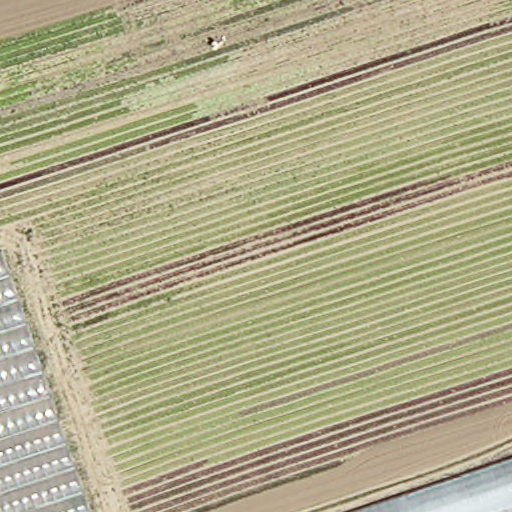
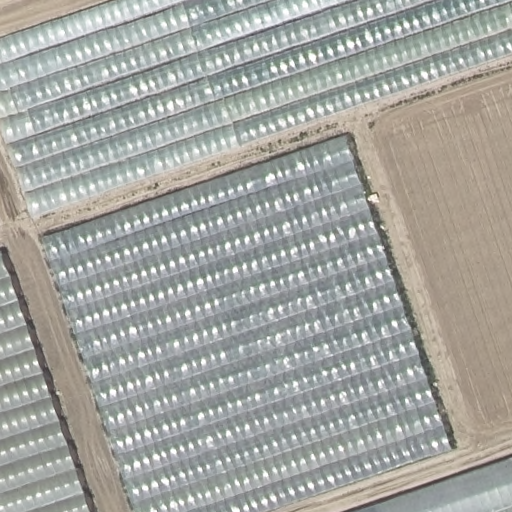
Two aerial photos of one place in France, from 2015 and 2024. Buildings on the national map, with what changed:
new [(0,122),(0,39),(114,0),(512,0),(512,55),(34,217),(0,122)]
new [(266,512),(136,512),(43,237),(345,136),(451,449),(266,512)]
new [(90,512),(0,512),(0,254),(2,253),(90,512)]
unchanged [(344,512),(512,454),(512,512),(344,512)]

